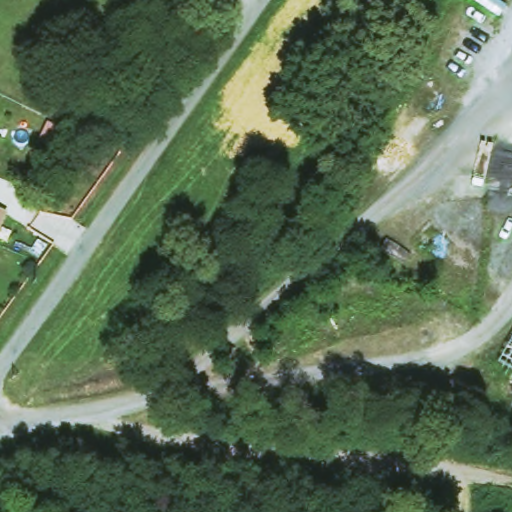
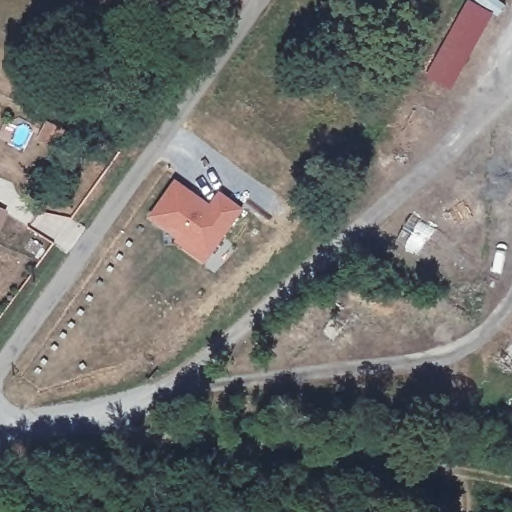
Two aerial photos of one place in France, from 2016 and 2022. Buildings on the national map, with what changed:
new [(426,76),(468,2),(492,16),(451,90),(426,76)]
new [(211,204),(221,190),(245,208),(207,263),(176,242),(179,237),(151,217),(177,179),(211,204)]
demolished [(0,210),(0,205),(1,206),(0,210)]
unchanged [(496,365),(512,338),(512,372),(496,365)]

